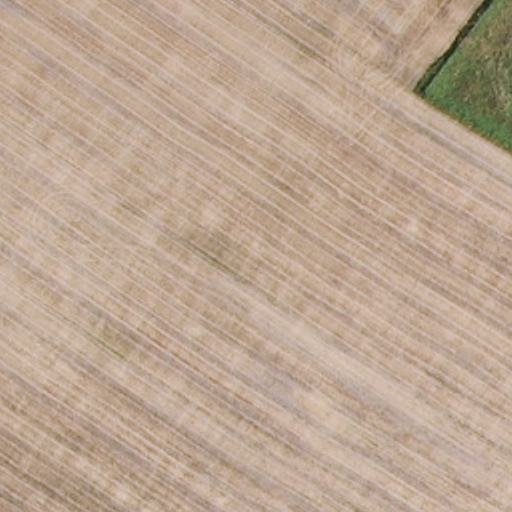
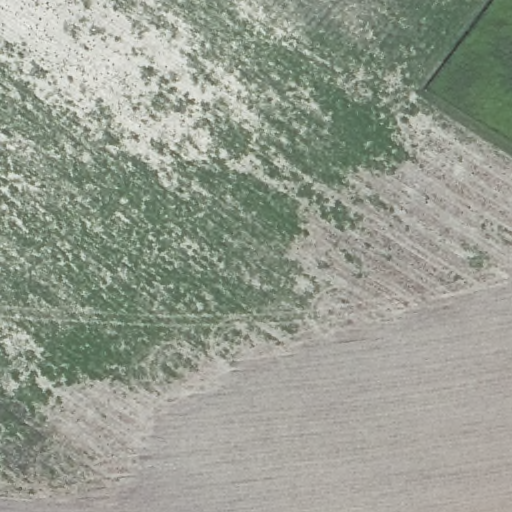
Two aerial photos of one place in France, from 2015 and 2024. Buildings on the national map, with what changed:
[]

